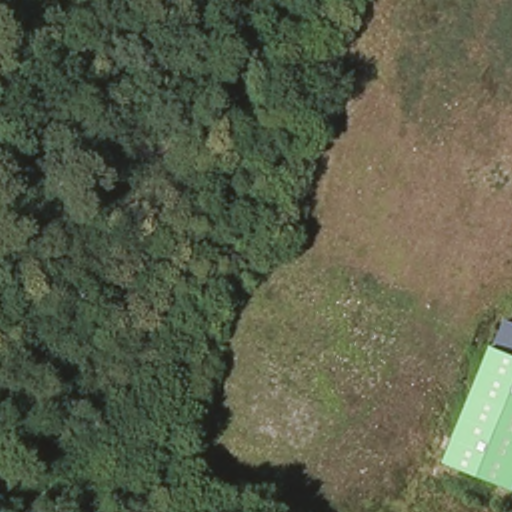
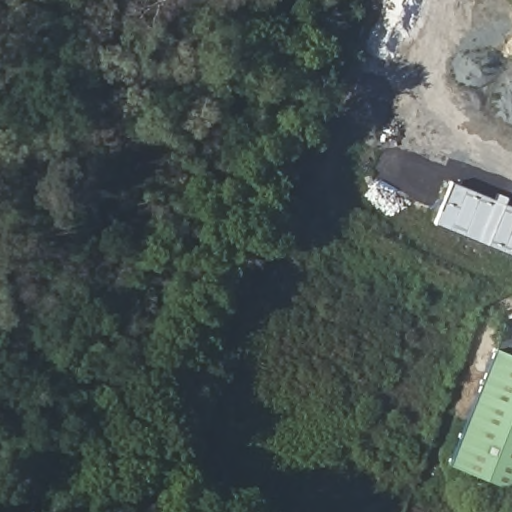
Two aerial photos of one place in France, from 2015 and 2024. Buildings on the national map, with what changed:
new [(437,224),(453,182),(495,200),(497,192),(507,195),(505,204),(512,207),(512,254),(437,224)]
unchanged [(450,465),(508,320),(512,322),(512,489),(450,465)]

